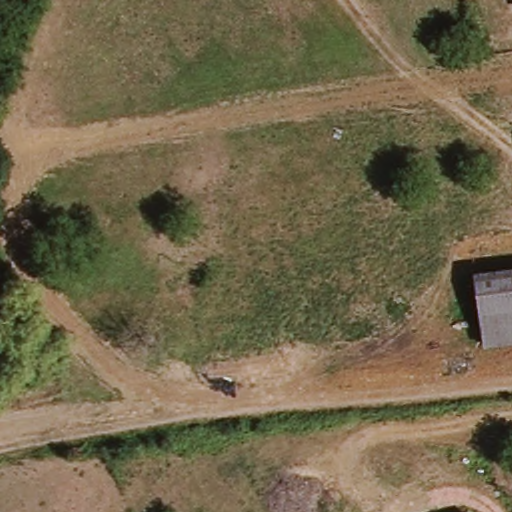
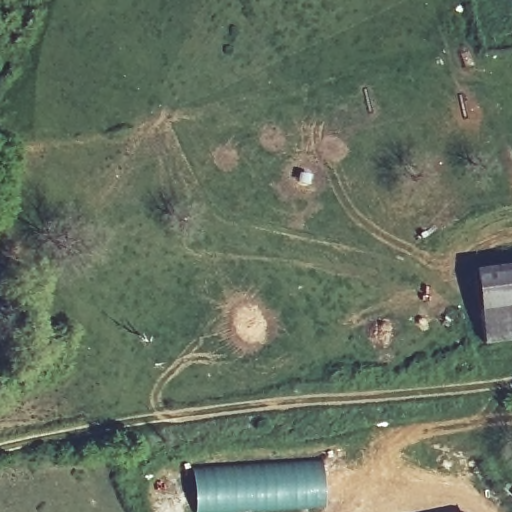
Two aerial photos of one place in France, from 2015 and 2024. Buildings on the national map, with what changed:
unchanged [(471,279),(512,274),(512,335),(476,340),(471,279)]
new [(279,512),(194,512),(191,465),(322,457),(325,509),(279,512)]

